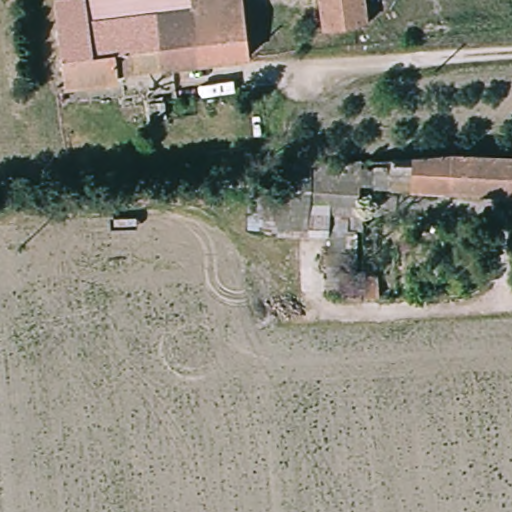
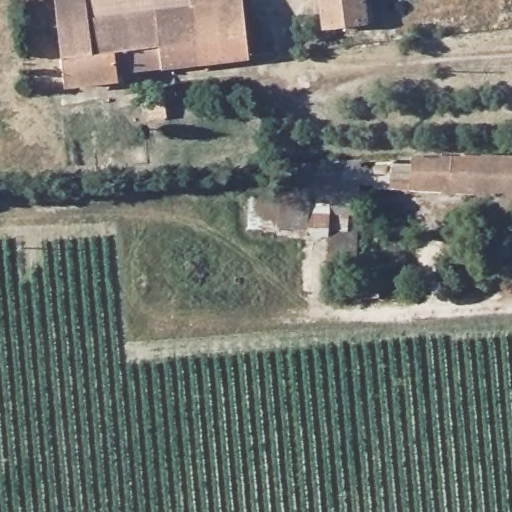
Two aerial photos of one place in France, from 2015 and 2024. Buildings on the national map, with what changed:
unchanged [(119,71),(119,79),(65,84),(53,0),(245,0),(250,56),(119,71)]
unchanged [(368,24),(321,28),(317,0),(365,0),(368,24)]
unchanged [(360,184),(360,160),(362,164),(392,166),(393,161),(410,164),(412,155),(457,150),(484,152),(481,192),(360,184)]
unchanged [(484,152),(512,154),(512,194),(481,192),(484,152)]
unchanged [(360,160),(360,184),(357,236),(263,228),(267,165),(360,160)]
unchanged [(377,275),(379,298),(354,299),(343,300),(342,277),(355,276),(377,275)]

